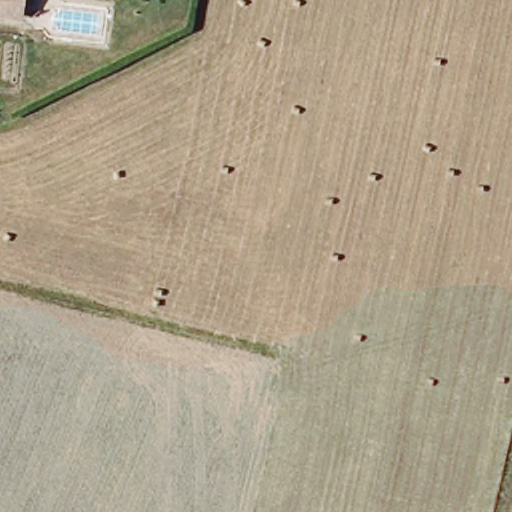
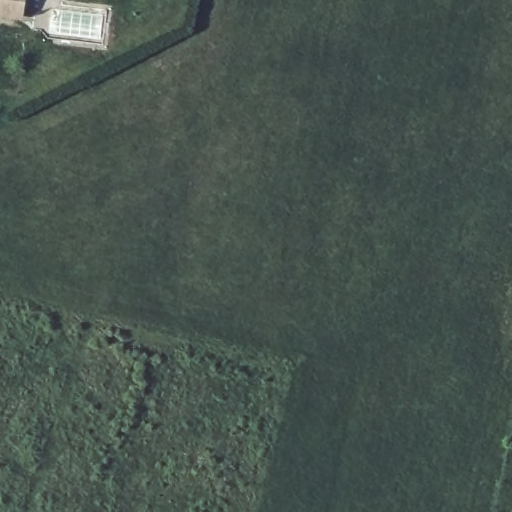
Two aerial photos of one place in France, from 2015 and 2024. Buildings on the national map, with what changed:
unchanged [(0,16),(0,0),(18,0),(16,17),(0,16)]

